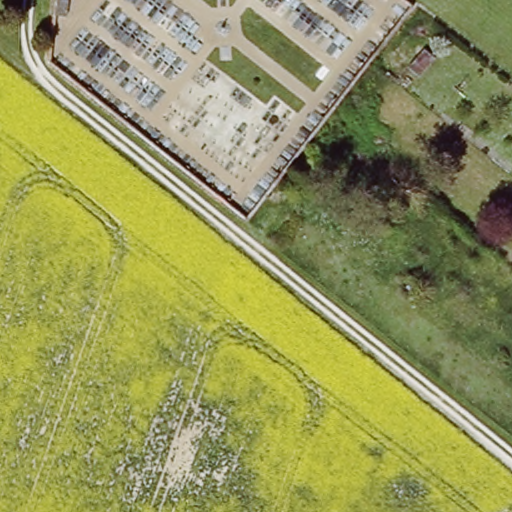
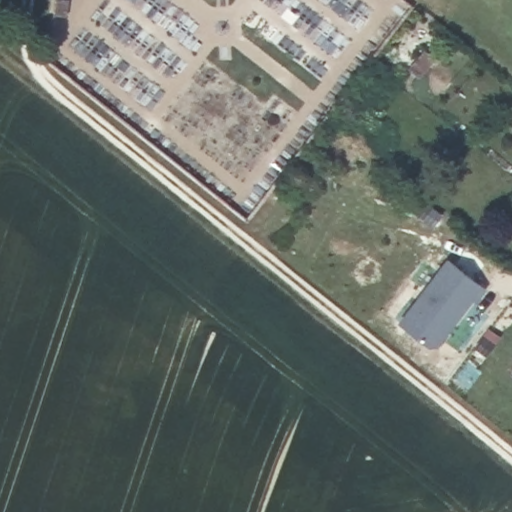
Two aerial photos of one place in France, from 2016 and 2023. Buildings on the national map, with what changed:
unchanged [(297,156),(311,168),(303,177),(289,165),(297,156)]
new [(448,259),(483,287),(437,348),(429,348),(399,323),(448,259)]

